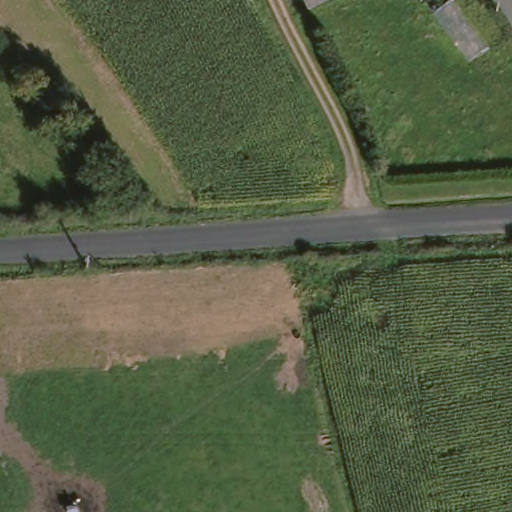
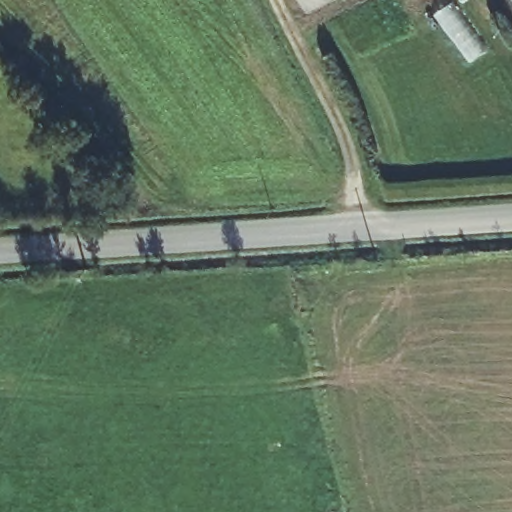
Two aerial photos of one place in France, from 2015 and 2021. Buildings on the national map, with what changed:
unchanged [(300,0),(319,0),(305,8),(300,0)]

